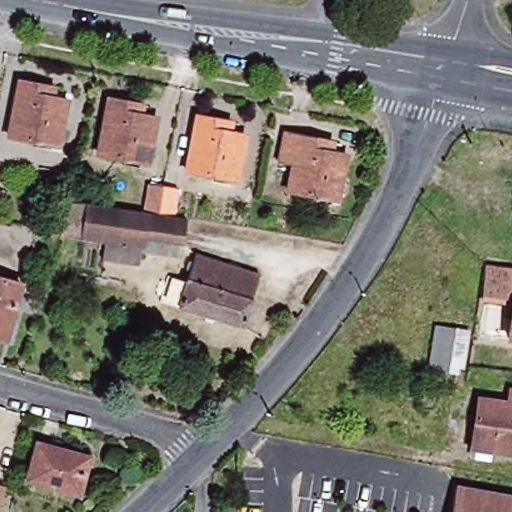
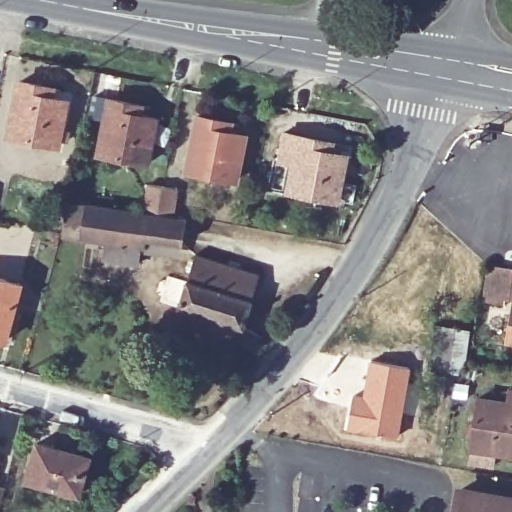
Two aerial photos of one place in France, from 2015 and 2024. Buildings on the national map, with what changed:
unchanged [(54,86),(52,96),(69,99),(59,144),(9,134),(21,79),(54,86)]
unchanged [(142,104),(141,114),(155,116),(147,161),(99,152),(110,96),(142,104)]
unchanged [(234,179),(187,169),(198,114),(231,120),(229,129),(243,132),(234,179)]
unchanged [(339,204),(291,194),(297,168),(283,164),(289,138),(333,146),(332,154),(348,158),(339,204)]
unchanged [(143,212),(149,185),(163,188),(177,190),(170,216),(158,214),(143,212)]
unchanged [(185,222),(182,246),(146,240),(144,250),(67,239),(70,205),(185,222)]
unchanged [(244,325),(181,307),(198,254),(262,274),(244,325)]
unchanged [(481,299),(483,265),(512,269),(512,300),(481,299)]
unchanged [(0,336),(0,276),(20,281),(5,338),(0,336)]
unchanged [(460,377),(426,371),(434,324),(469,330),(460,377)]
unchanged [(509,338),(512,324),(512,338),(509,338)]
new [(353,394),(362,394),(369,359),(411,367),(398,438),(347,428),(353,394)]
unchanged [(512,444),(508,461),(464,452),(473,402),(499,407),(502,394),(512,396),(512,444)]
unchanged [(81,491),(29,477),(39,442),(91,454),(81,491)]
new [(0,502),(0,484),(5,486),(0,502)]
unchanged [(460,491),(512,500),(512,512),(457,512),(460,491)]

